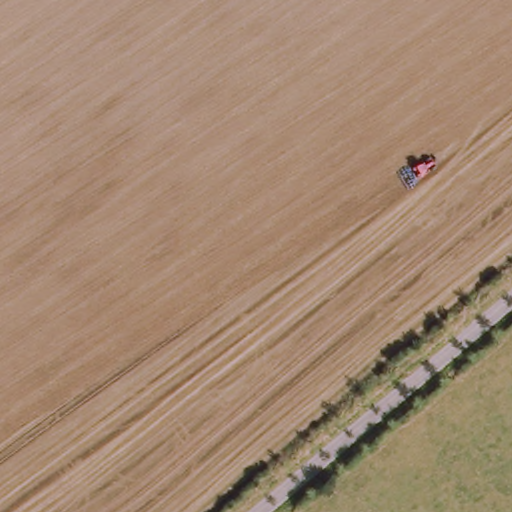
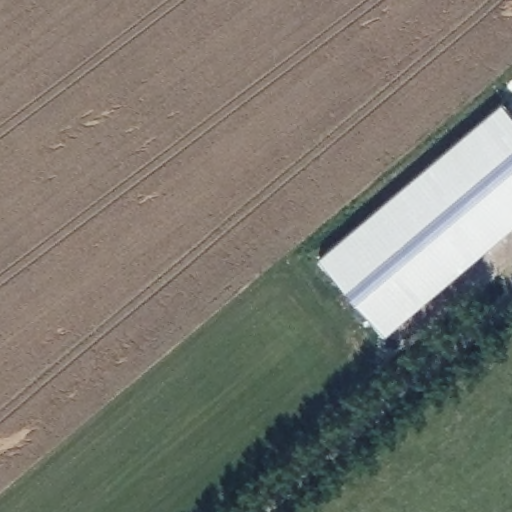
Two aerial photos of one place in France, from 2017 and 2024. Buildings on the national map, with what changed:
new [(512,111),(512,227),(386,335),(321,256),(503,101),(512,111)]

